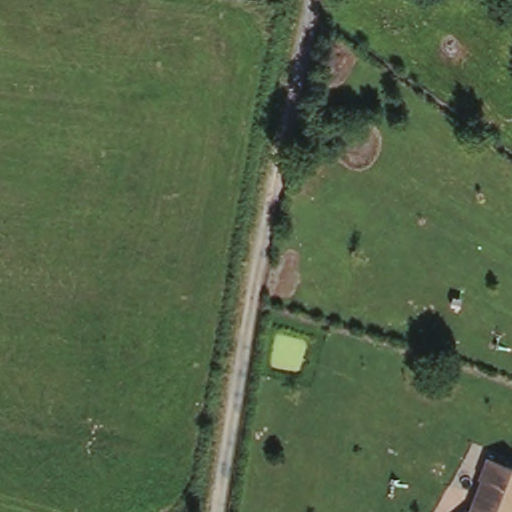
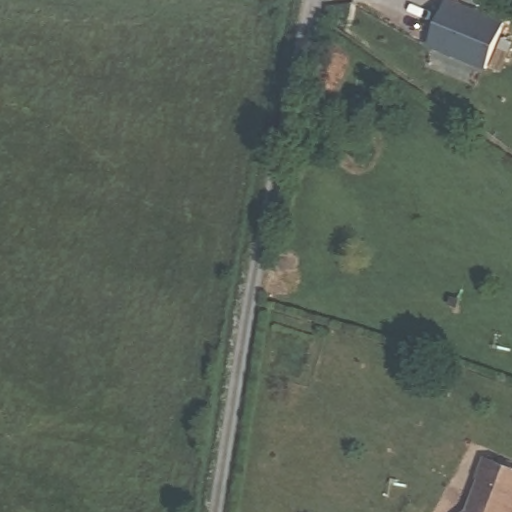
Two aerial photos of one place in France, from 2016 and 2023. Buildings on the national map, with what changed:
new [(448,0),(503,23),(484,68),(430,45),(448,0)]
unchanged [(479,483),(475,480),(482,457),(512,468),(512,512),(467,512),(479,483)]

